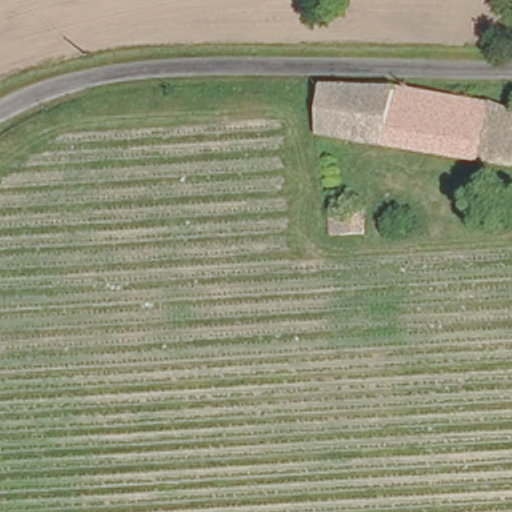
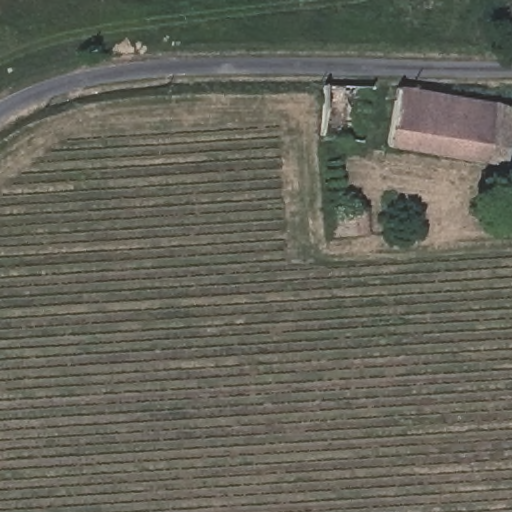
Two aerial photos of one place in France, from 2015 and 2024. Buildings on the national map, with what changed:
unchanged [(512,117),(512,168),(322,137),(329,95),(413,94),(512,117)]
unchanged [(338,237),(338,214),(366,214),(367,238),(338,237)]

